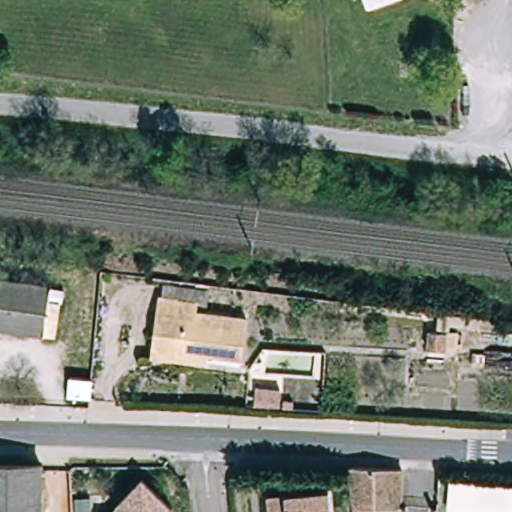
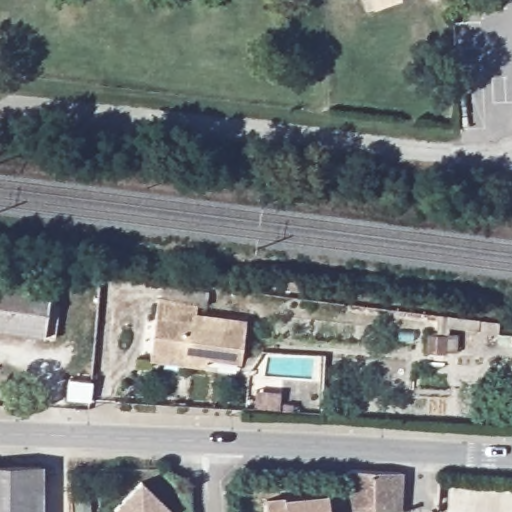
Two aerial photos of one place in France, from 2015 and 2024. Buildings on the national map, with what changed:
unchanged [(50,282),(47,297),(60,299),(55,333),(0,326),(0,275),(50,282)]
unchanged [(145,352),(152,300),(192,305),(191,315),(241,322),(236,362),(202,357),(201,366),(182,364),(144,359),(145,352)]
unchanged [(92,381),(91,393),(90,401),(67,398),(69,379),(92,381)]
unchanged [(41,461),(41,512),(0,512),(0,461),(41,461)]
unchanged [(399,512),(375,512),(351,511),(346,469),(401,472),(399,512)]
unchanged [(512,484),(512,512),(445,512),(448,479),(512,484)]
unchanged [(140,482),(169,510),(168,512),(117,512),(115,509),(140,482)]
unchanged [(267,512),(265,496),(328,490),(331,512),(267,512)]

